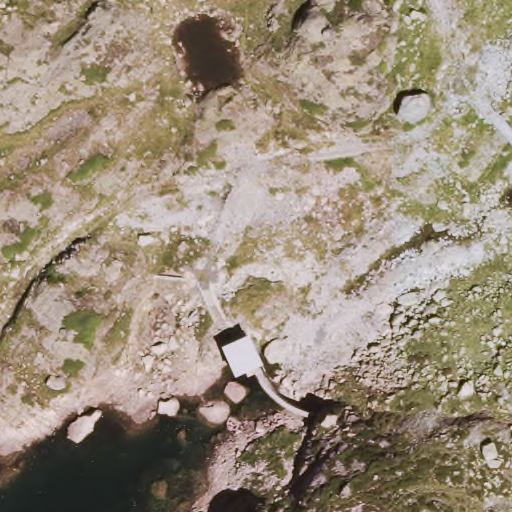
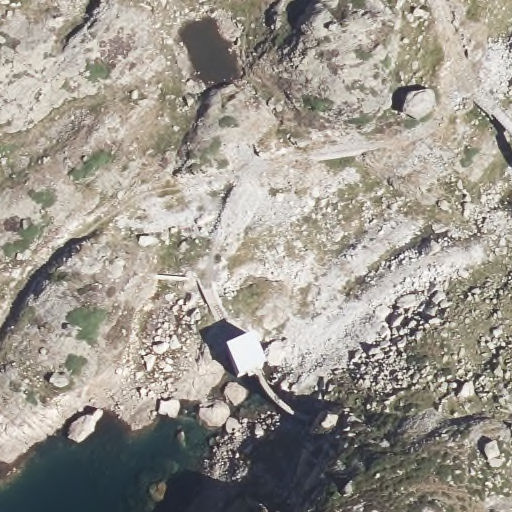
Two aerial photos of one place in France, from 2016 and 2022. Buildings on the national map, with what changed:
unchanged [(221,337),(237,329),(251,361),(234,366),(221,337)]

